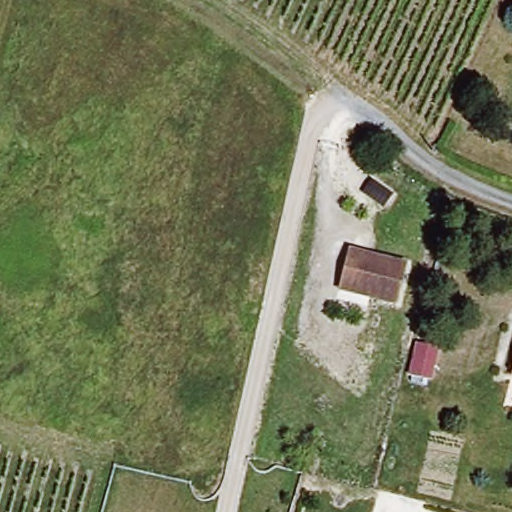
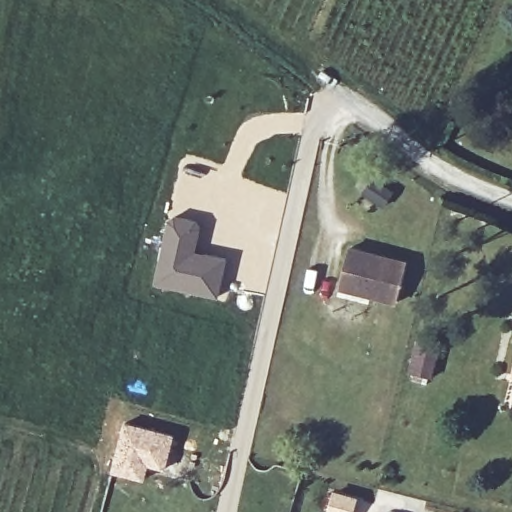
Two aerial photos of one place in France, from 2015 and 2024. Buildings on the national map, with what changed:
new [(167,217),(199,222),(197,250),(227,257),(217,301),(151,286),(167,217)]
unchanged [(402,265),(392,304),(335,290),(346,250),(402,265)]
unchanged [(442,351),(428,383),(405,376),(414,343),(442,351)]
new [(124,422),(175,434),(165,471),(149,466),(145,481),(110,472),(124,422)]

